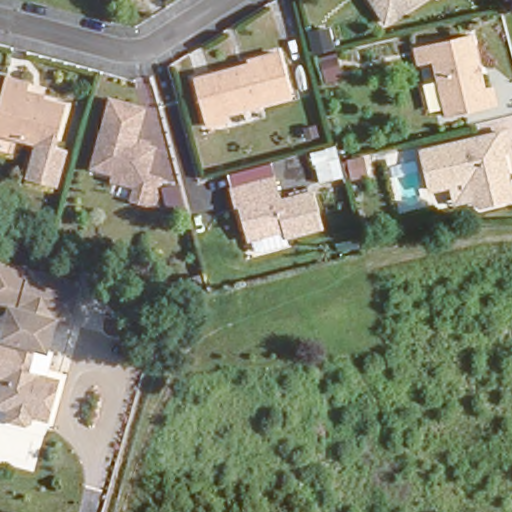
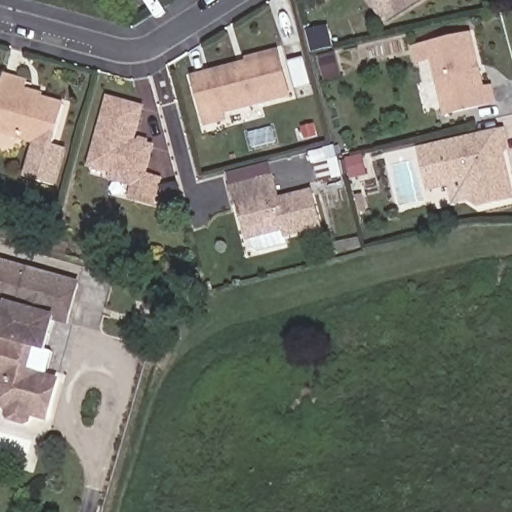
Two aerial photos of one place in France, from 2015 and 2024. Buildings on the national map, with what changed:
unchanged [(382,14),(374,0),(406,0),(382,14)]
unchanged [(322,88),(318,64),(314,65),(307,31),(331,26),(344,80),(322,88)]
unchanged [(490,97),(447,109),(427,55),(409,60),(405,48),(469,29),(490,97)]
unchanged [(242,59),(280,49),(291,86),(221,105),(224,115),(205,120),(192,77),(243,63),(242,59)]
unchanged [(24,97),(67,109),(55,146),(34,140),(0,129),(0,91),(3,80),(27,87),(24,97)]
unchanged [(114,191),(118,175),(81,166),(104,95),(142,104),(133,135),(148,139),(140,168),(150,170),(143,198),(114,191)]
unchanged [(497,138),(493,139),(507,188),(474,197),(467,173),(433,182),(422,145),(494,126),(497,138)]
unchanged [(55,146),(67,149),(59,188),(23,178),(34,140),(55,146)]
unchanged [(335,143),(346,177),(321,184),(313,160),(311,161),(308,151),(335,143)]
unchanged [(256,243),(252,239),(250,234),(250,231),(248,231),(239,196),(235,197),(230,180),(274,167),(280,188),(314,179),(325,217),(286,228),(288,235),(256,243)]
unchanged [(27,375),(33,354),(44,357),(53,322),(18,311),(9,339),(0,336),(0,261),(78,284),(61,353),(56,350),(49,381),(27,375)]
unchanged [(29,419),(25,429),(3,424),(5,416),(0,414),(0,336),(9,339),(18,311),(53,322),(44,357),(33,354),(27,375),(49,381),(59,384),(43,422),(29,419)]

